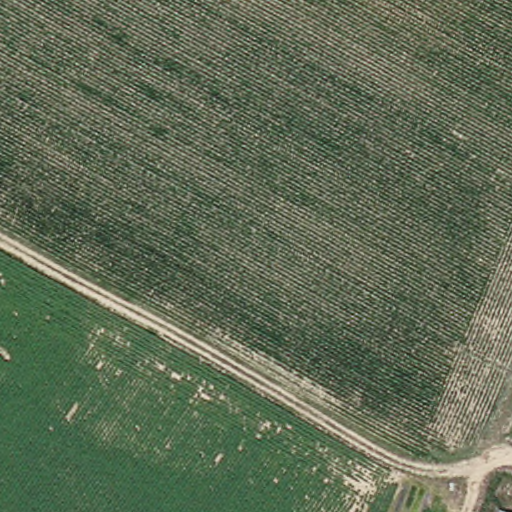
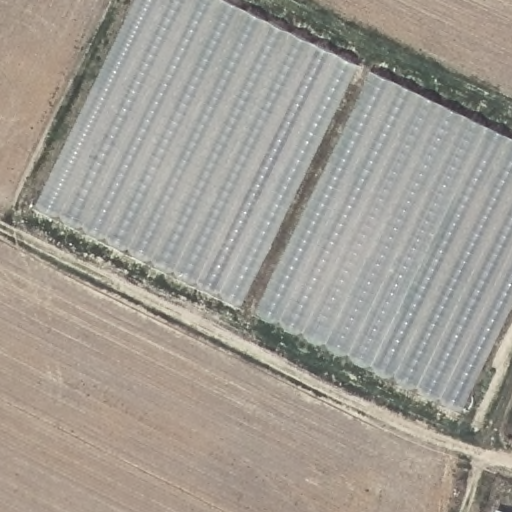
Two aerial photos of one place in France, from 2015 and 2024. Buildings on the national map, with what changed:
new [(512,303),(459,412),(37,209),(138,0),(222,0),(512,139),(512,303)]
unchanged [(510,512),(498,512),(500,508),(510,512)]

